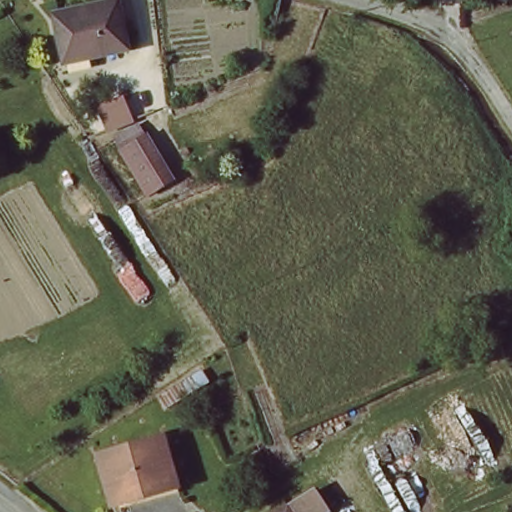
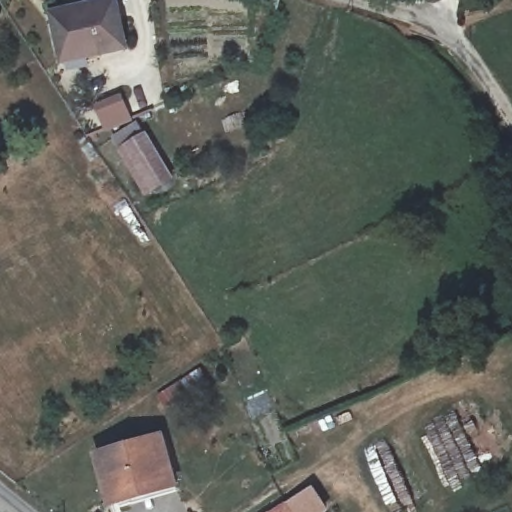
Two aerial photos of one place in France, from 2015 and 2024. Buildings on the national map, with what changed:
unchanged [(93,57),(90,52),(66,58),(58,16),(105,4),(118,1),(131,47),(93,57)]
unchanged [(153,198),(126,155),(120,145),(143,130),(151,140),(176,182),(153,198)]
unchanged [(180,484),(118,503),(106,459),(166,440),(180,484)]
unchanged [(289,512),(294,509),(295,512),(289,512)]

